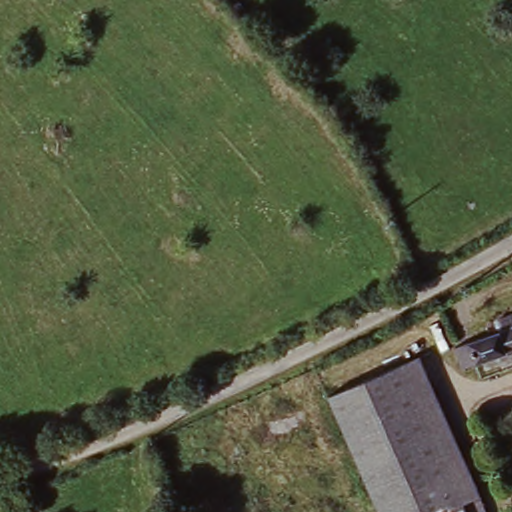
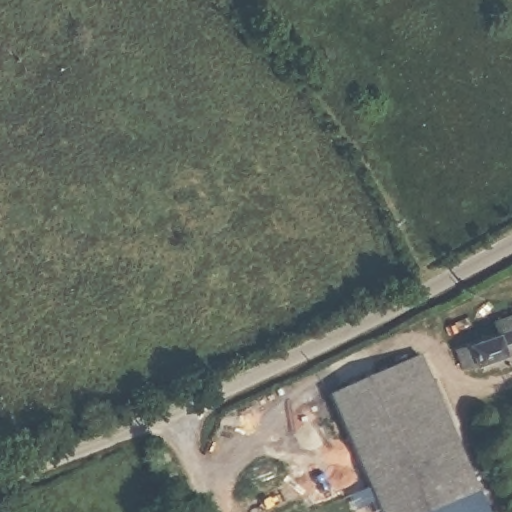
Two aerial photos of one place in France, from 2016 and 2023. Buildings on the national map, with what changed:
unchanged [(511,334),(507,321),(512,319),(512,362),(473,380),(464,358),(511,334)]
unchanged [(488,512),(374,512),(356,474),(322,401),(418,361),(488,512)]

